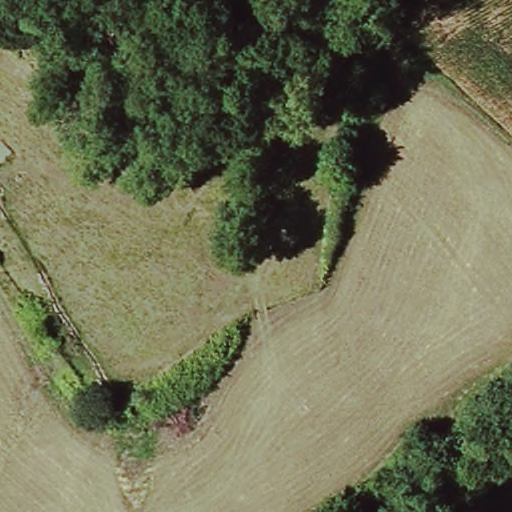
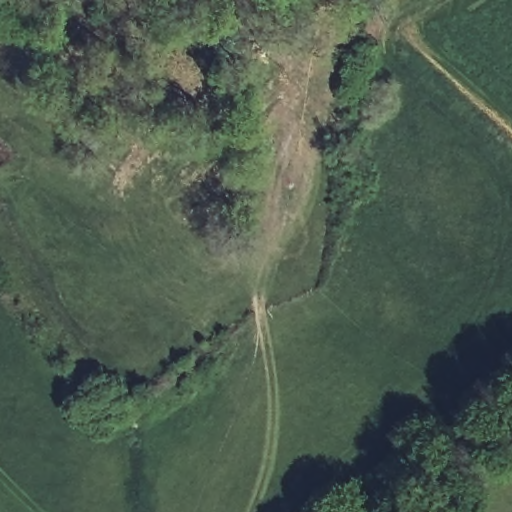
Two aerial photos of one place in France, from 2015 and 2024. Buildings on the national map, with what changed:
unchanged [(351,132),(342,125),(352,108),(366,119),(351,132)]

